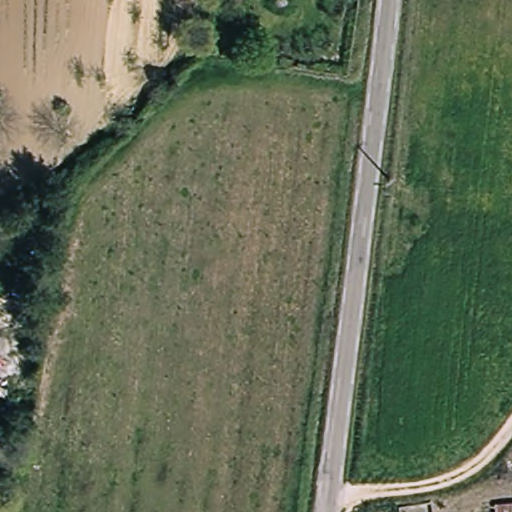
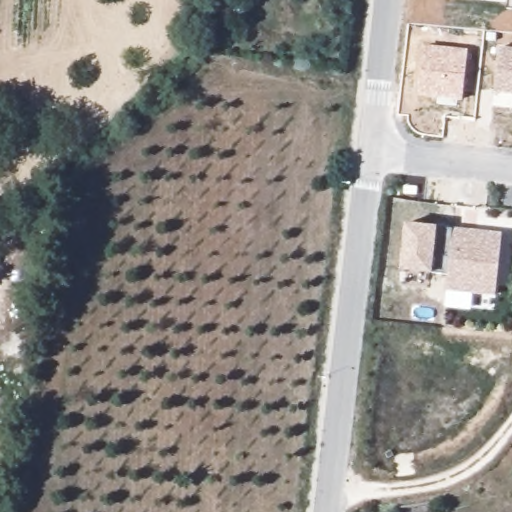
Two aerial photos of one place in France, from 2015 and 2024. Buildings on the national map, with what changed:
new [(509,0),(512,0),(512,9),(509,9),(509,0)]
new [(468,50),(463,101),(417,97),(422,47),(468,50)]
new [(495,92),(498,49),(512,49),(512,94),(495,92)]
new [(438,226),(501,233),(497,296),(474,295),(472,311),(445,308),(448,275),(433,275),(400,271),(405,223),(438,226)]

